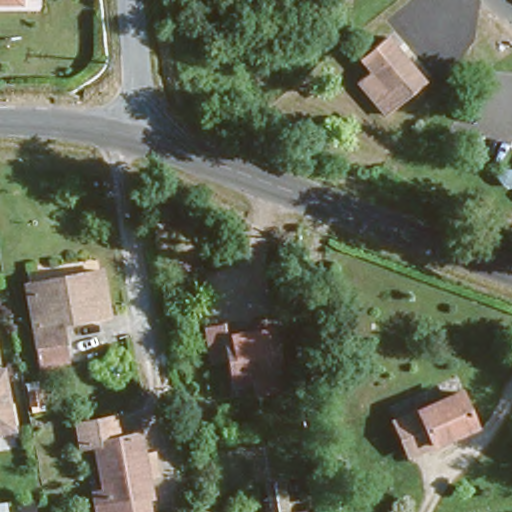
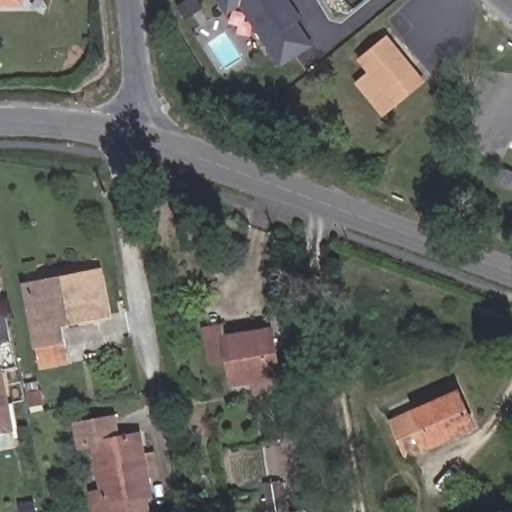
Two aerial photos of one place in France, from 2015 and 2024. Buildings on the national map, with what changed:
unchanged [(23,1),(0,1),(0,0),(23,0),(23,1)]
new [(227,16),(216,0),(283,0),(312,43),(280,68),(240,7),(227,16)]
unchanged [(404,98),(390,110),(363,80),(376,69),(364,56),(389,34),(417,65),(428,76),(404,98)]
unchanged [(60,276),(59,270),(101,267),(104,313),(61,318),(65,352),(34,356),(29,322),(36,321),(30,277),(60,276)]
unchanged [(225,316),(227,329),(275,324),(281,371),(234,377),(231,351),(210,353),(206,318),(225,316)]
unchanged [(13,431),(0,432),(0,331),(13,431)]
unchanged [(456,391),(469,425),(404,451),(391,417),(456,391)]
unchanged [(109,510),(88,512),(84,483),(95,482),(91,427),(76,429),(75,407),(110,405),(112,423),(136,421),(137,437),(149,437),(150,462),(139,463),(141,483),(129,484),(130,508),(109,510)]
unchanged [(279,496),(262,499),(258,476),(275,473),(279,496)]

